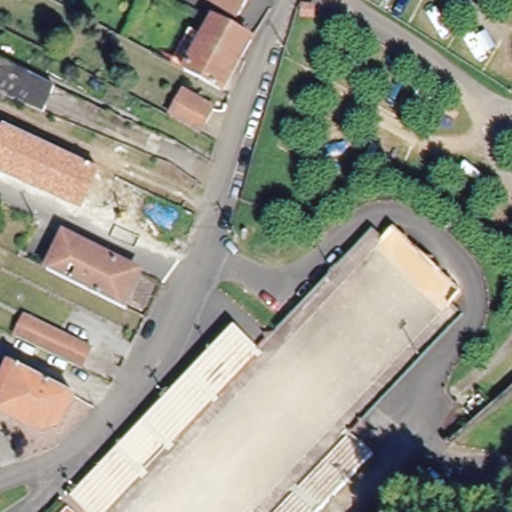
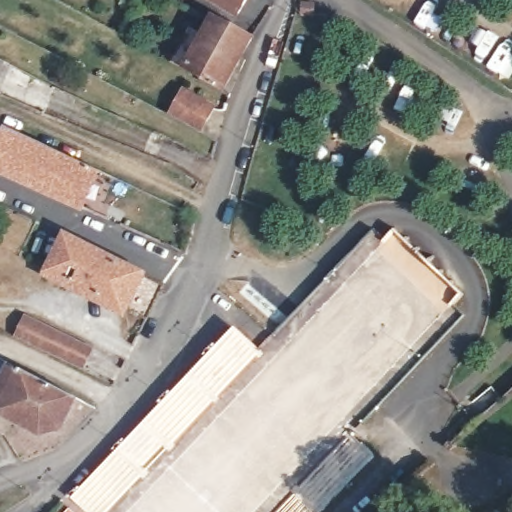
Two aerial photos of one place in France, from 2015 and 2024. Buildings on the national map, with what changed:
unchanged [(218,0),(244,0),(238,12),(218,0)]
unchanged [(314,6),(314,16),(304,16),(305,6),(314,6)]
unchanged [(230,29),(250,40),(223,90),(183,69),(211,19),(230,29)]
unchanged [(0,91),(0,58),(54,86),(41,111),(0,91)]
unchanged [(169,116),(182,93),(212,108),(200,132),(169,116)]
unchanged [(102,170),(84,212),(0,173),(0,123),(102,170)]
unchanged [(48,271),(63,240),(138,276),(123,308),(48,271)]
unchanged [(91,350),(81,370),(14,338),(25,317),(91,350)]
unchanged [(207,407),(167,449),(135,482),(105,512),(88,512),(76,500),(134,439),(217,353),(235,334),(258,356),(231,383),(207,407)]
unchanged [(60,429),(40,435),(0,413),(0,363),(74,400),(60,429)]
unchanged [(284,507),(329,459),(346,441),(369,463),(323,512),(279,512),(284,507)]

